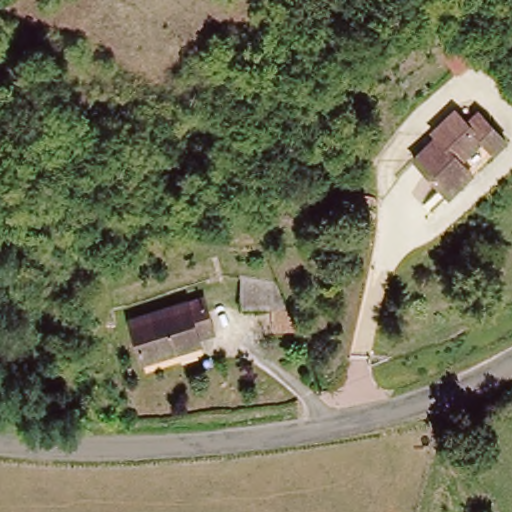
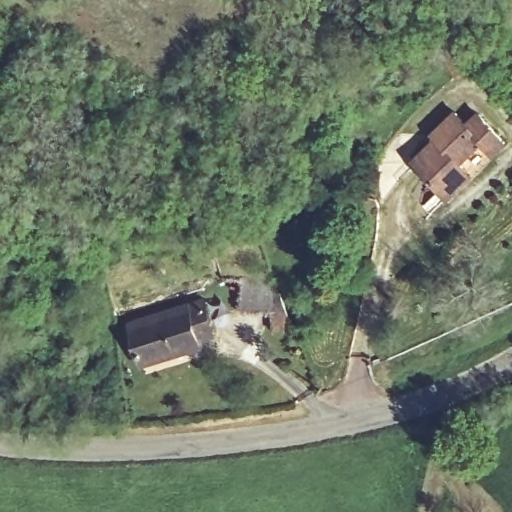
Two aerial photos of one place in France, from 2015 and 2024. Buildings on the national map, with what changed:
unchanged [(470,51),(449,68),(437,52),(434,47),(454,31),(458,35),(470,51)]
unchanged [(414,161),(439,137),(434,132),(456,111),(471,126),(481,115),(509,142),(497,154),(482,140),(461,161),(465,166),(474,174),(449,198),(441,189),(414,161)]
unchanged [(296,322),(271,322),(271,310),(239,309),(238,277),(277,277),(296,322)]
unchanged [(144,362),(129,321),(201,297),(213,331),(199,336),(201,342),(144,362)]

